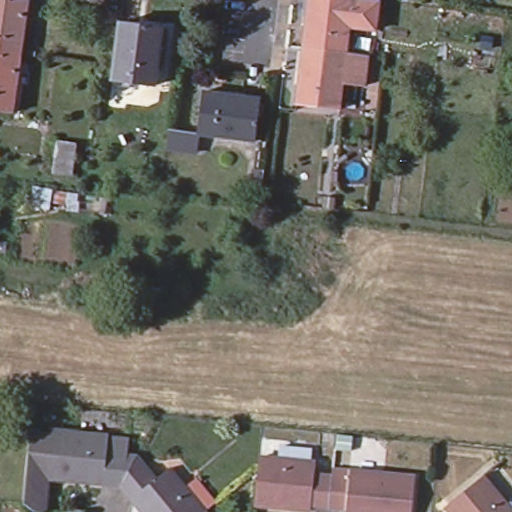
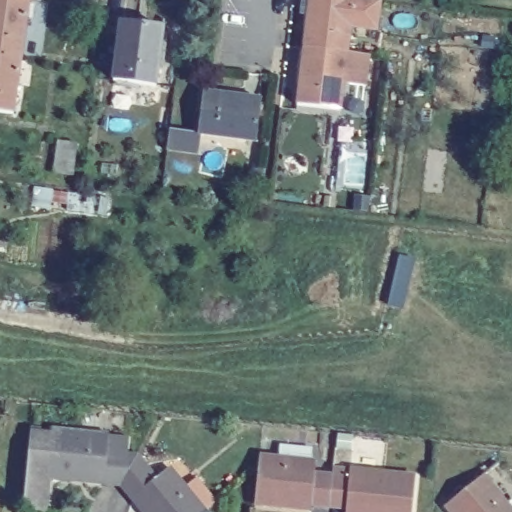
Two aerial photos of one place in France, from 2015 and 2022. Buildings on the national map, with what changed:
unchanged [(0,56),(0,0),(12,0),(31,2),(23,59),(0,56)]
unchanged [(85,0),(108,0),(108,3),(85,0)]
unchanged [(296,105),(302,48),(308,0),(350,0),(344,53),(365,55),(362,87),(340,85),(337,111),(296,105)]
unchanged [(165,29),(157,87),(116,81),(123,24),(165,29)]
unchanged [(23,59),(15,116),(0,114),(0,56),(23,59)]
unchanged [(263,101),(257,143),(201,136),(206,94),(263,101)]
unchanged [(78,143),(73,176),(57,174),(61,142),(78,143)]
unchanged [(254,190),(256,169),(267,171),(265,191),(254,190)]
unchanged [(72,214),(53,211),(52,220),(30,216),(34,190),(75,197),(72,214)]
unchanged [(49,479),(53,435),(54,431),(110,437),(130,439),(129,456),(138,457),(123,486),(51,479),(49,479)]
unchanged [(48,512),(35,512),(26,504),(33,433),(53,435),(49,479),(51,479),(48,512)]
unchanged [(138,457),(156,479),(170,469),(205,512),(144,512),(123,486),(138,457)]
unchanged [(313,506),(313,510),(256,505),(259,469),(260,457),(317,463),(317,475),(334,477),(330,507),(313,506)]
unchanged [(351,478),(352,471),(416,476),(413,512),(347,512),(348,509),(330,507),(334,477),(351,478)]
unchanged [(484,477),(512,511),(512,512),(451,512),(447,507),(484,477)]

